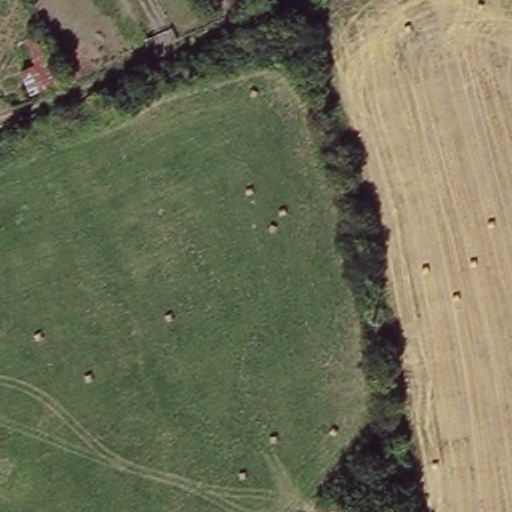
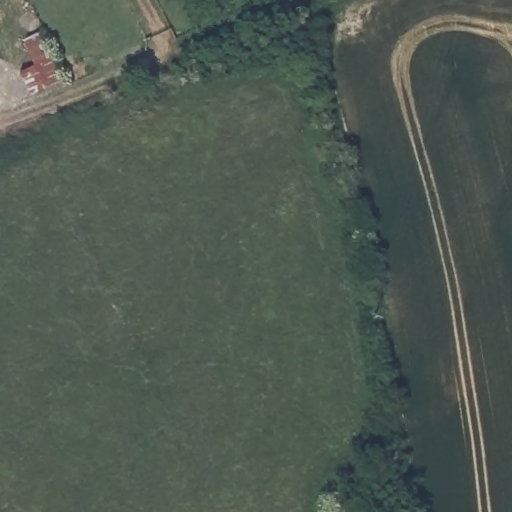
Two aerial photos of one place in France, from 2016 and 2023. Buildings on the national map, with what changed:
unchanged [(46,26),(69,74),(37,88),(27,65),(43,58),(32,32),(46,26)]

